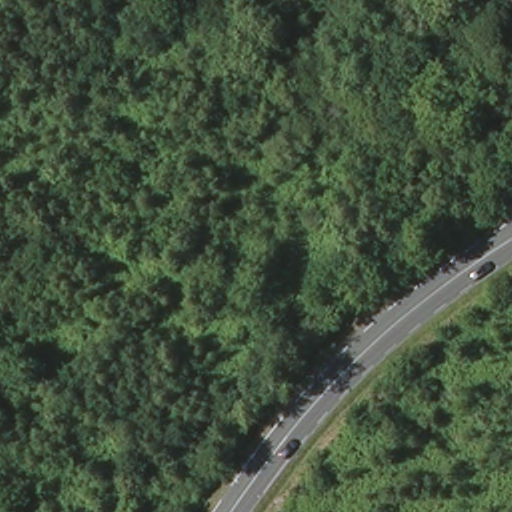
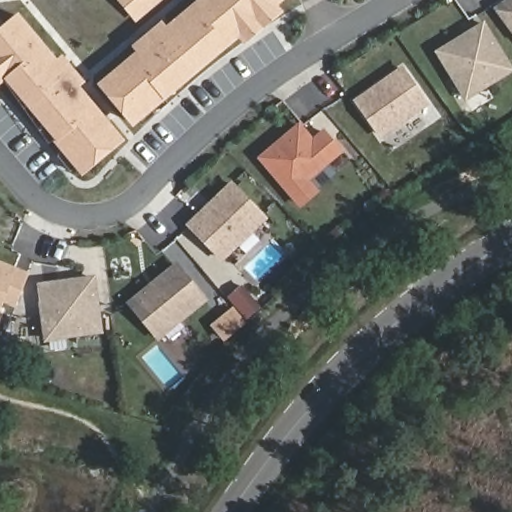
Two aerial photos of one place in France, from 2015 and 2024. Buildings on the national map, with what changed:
new [(136,48),(162,21),(170,29),(203,0),(289,0),(138,133),(99,86),(139,54),(136,48)]
new [(117,0),(169,0),(139,21),(117,0)]
new [(502,0),(512,0),(512,34),(493,7),(502,0)]
new [(85,181),(10,82),(0,90),(0,18),(8,27),(21,15),(129,142),(85,181)]
new [(434,50),(484,20),(512,65),(512,73),(465,101),(434,50)]
new [(382,139),(352,101),(402,65),(431,104),(382,139)]
new [(299,209),(256,158),(298,122),(311,137),(322,128),(343,151),(310,179),(319,191),(299,209)]
new [(222,264),(184,225),(231,179),(268,218),(222,264)]
new [(28,272),(15,307),(3,302),(0,310),(0,260),(28,272)]
new [(158,342),(124,303),(175,261),(208,300),(158,342)]
new [(44,342),(36,283),(95,275),(103,333),(44,342)]
new [(233,310),(246,325),(227,341),(214,325),(233,310)]

